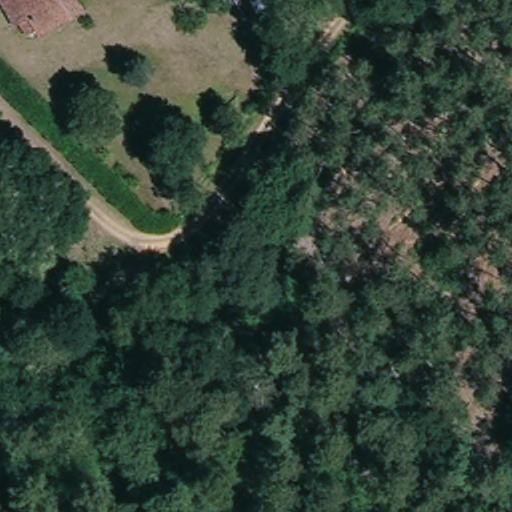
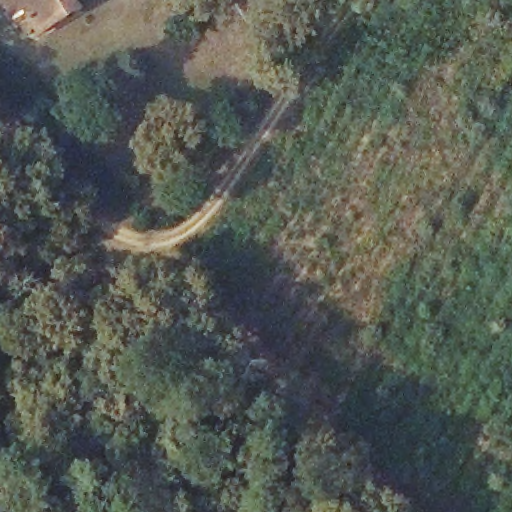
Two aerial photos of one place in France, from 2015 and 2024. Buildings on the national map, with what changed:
unchanged [(47,34),(44,29),(33,35),(26,23),(24,25),(10,0),(85,0),(90,10),(47,34)]
unchanged [(242,0),(269,0),(248,12),(242,0)]

